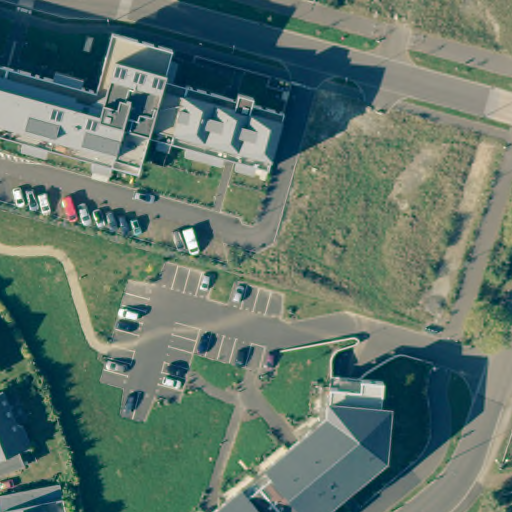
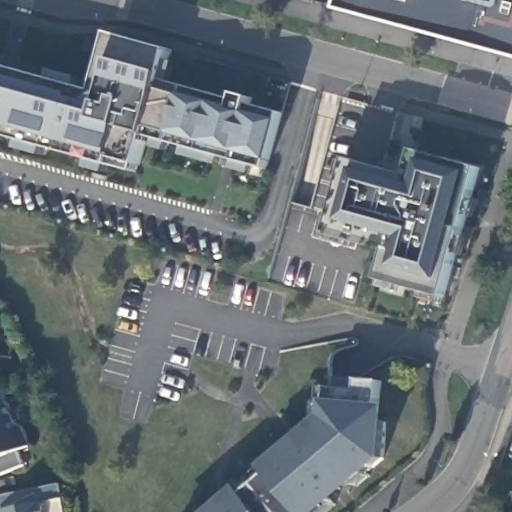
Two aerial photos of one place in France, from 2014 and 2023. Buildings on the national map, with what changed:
new [(512,0),(512,54),(340,9),(343,0),(512,0)]
unchanged [(111,34),(173,51),(169,61),(178,64),(172,83),(236,101),(238,96),(253,99),(250,106),(283,114),(281,122),(269,161),(267,169),(147,137),(136,172),(0,135),(0,65),(96,91),(111,34)]
new [(349,161),(410,177),(417,152),(481,167),(447,298),(382,281),(389,251),(329,236),(349,161)]
unchanged [(242,487),(246,493),(269,475),(263,467),(324,416),(327,398),(327,387),(358,389),(359,380),(381,382),(379,407),(390,407),(386,461),(323,512),(210,512),(242,487)]
unchanged [(19,451),(24,466),(0,475),(0,392),(3,391),(15,423),(22,426),(30,446),(19,451)]
unchanged [(0,496),(60,483),(66,512),(0,512),(0,496)]

